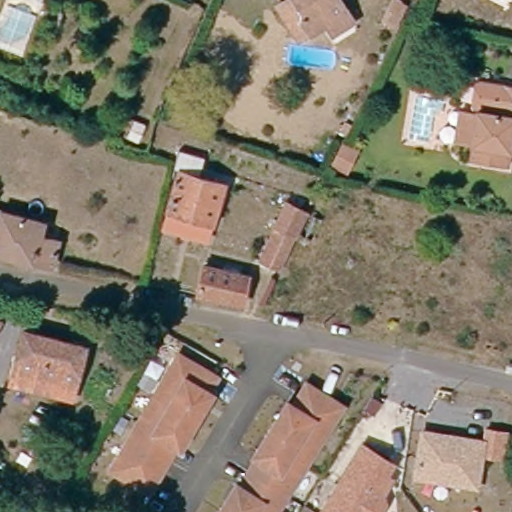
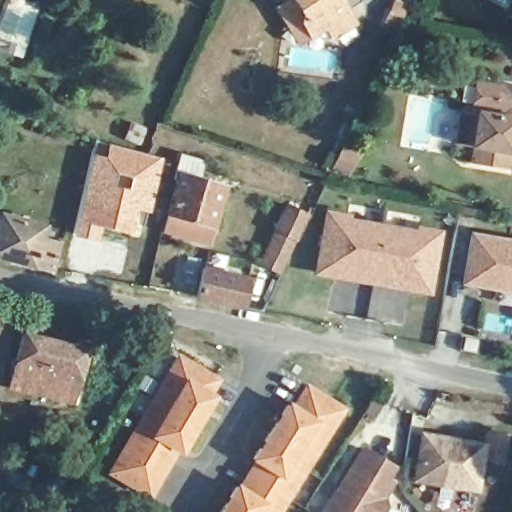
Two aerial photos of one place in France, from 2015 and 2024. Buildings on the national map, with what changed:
unchanged [(285,23),(278,9),(290,1),(289,0),(337,0),(350,22),(356,33),(353,35),(352,36),(335,46),(327,35),(313,43),(300,51),(286,23),(285,23)]
unchanged [(451,108),(461,108),(466,80),(512,86),(512,155),(506,154),(502,176),(474,173),(476,153),(462,150),(443,146),(451,108)]
new [(76,207),(91,151),(102,154),(106,143),(162,158),(141,238),(102,228),(99,242),(71,237),(76,207)]
unchanged [(211,244),(157,229),(170,179),(179,148),(208,158),(204,174),(227,182),(211,244)]
unchanged [(293,204),(311,214),(282,269),(280,275),(260,265),(262,261),(293,204)]
unchanged [(0,209),(47,223),(44,239),(37,264),(0,256),(0,209)]
new [(316,276),(327,216),(348,220),(347,226),(382,232),(372,287),(356,284),(336,280),(316,276)]
unchanged [(474,229),(512,236),(512,286),(466,278),(474,229)]
new [(372,287),(382,232),(417,239),(418,233),(439,237),(428,297),(408,293),(388,290),(372,287)]
unchanged [(196,302),(204,271),(250,280),(244,312),(196,302)]
unchanged [(0,325),(0,320),(2,322),(0,325)]
unchanged [(72,404),(17,392),(14,391),(24,339),(85,352),(72,404)]
unchanged [(182,359),(221,381),(212,395),(216,397),(185,451),(181,450),(155,494),(154,496),(116,473),(122,463),(104,452),(112,437),(130,448),(182,359)]
unchanged [(242,487),(261,459),(257,457),(291,404),(297,407),(310,386),(346,409),(280,512),(222,512),(225,508),(228,503),(240,485),(242,487)]
unchanged [(482,439),(484,428),(508,432),(503,463),(483,460),(478,492),(411,481),(420,428),(482,439)]
unchanged [(361,443),(398,464),(391,475),(396,479),(386,496),(389,504),(384,512),(318,512),(361,443)]

